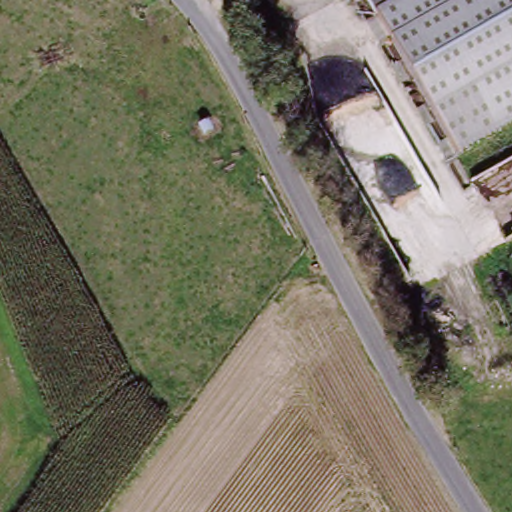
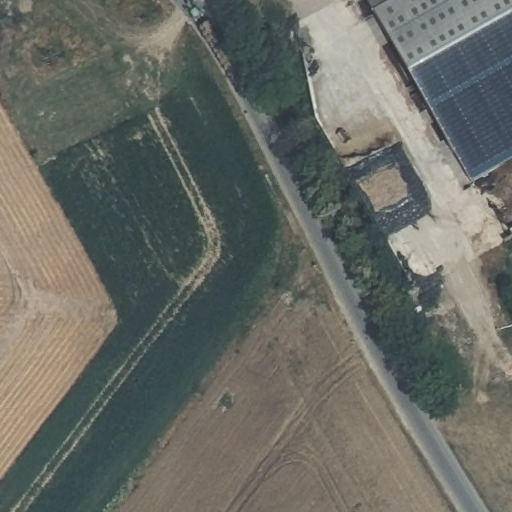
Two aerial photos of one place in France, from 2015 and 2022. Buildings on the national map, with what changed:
unchanged [(512,124),(455,156),(366,0),(512,0),(512,124)]

